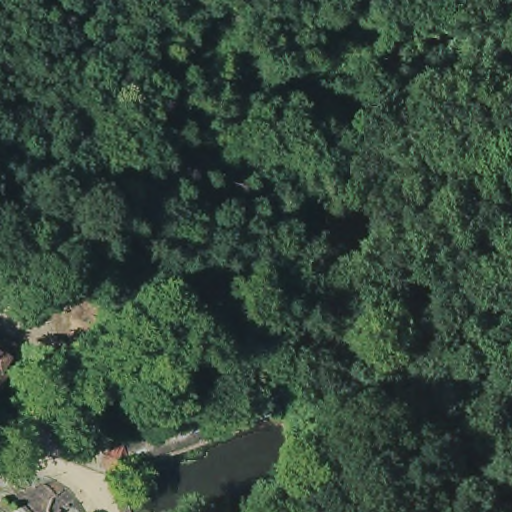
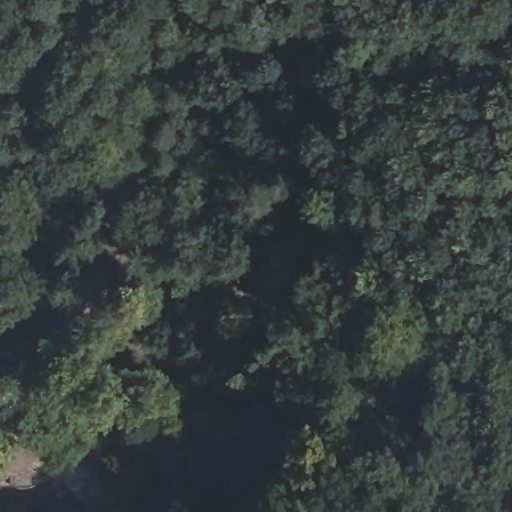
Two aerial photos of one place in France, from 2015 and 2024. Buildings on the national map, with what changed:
unchanged [(3,293),(15,266),(55,285),(43,311),(3,293)]
unchanged [(9,341),(19,348),(0,379),(0,344),(5,347),(9,341)]
unchanged [(218,401),(273,382),(282,413),(229,432),(223,416),(218,401)]
unchanged [(109,456),(223,416),(229,432),(114,473),(109,456)]

